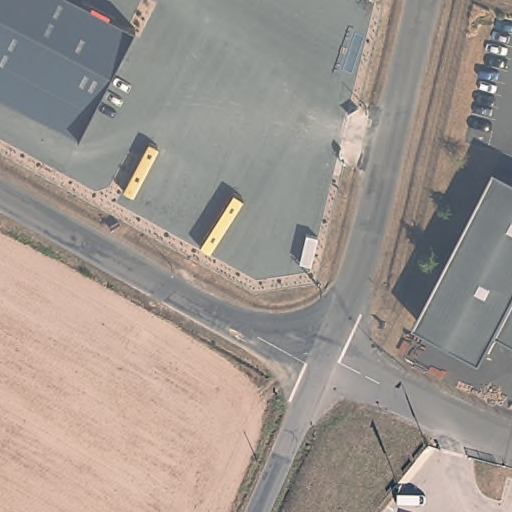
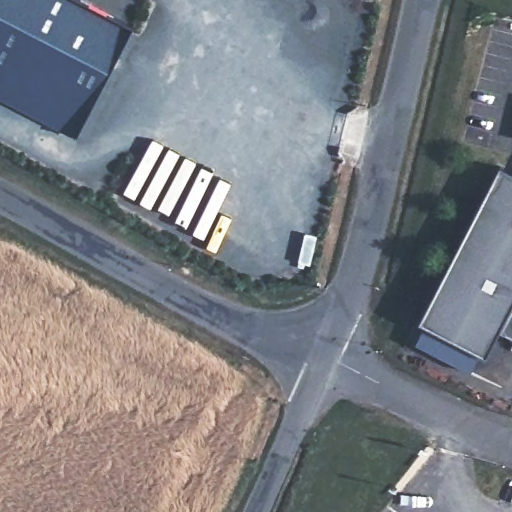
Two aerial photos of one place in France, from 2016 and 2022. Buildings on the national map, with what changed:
unchanged [(86,112),(0,69),(0,0),(85,0),(131,23),(86,112)]
unchanged [(512,315),(502,334),(489,358),(420,320),(500,167),(512,173),(512,315)]
unchanged [(512,315),(512,339),(502,334),(512,315)]

